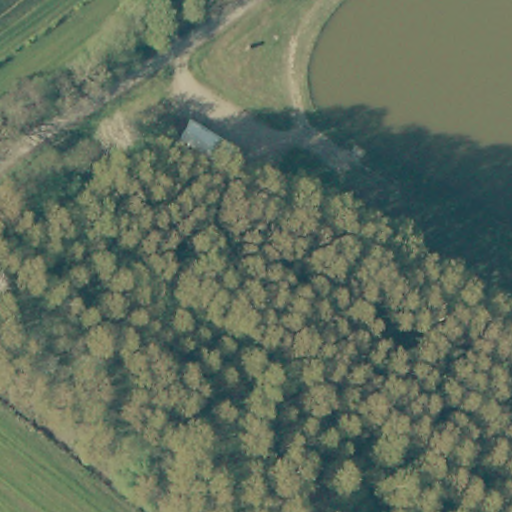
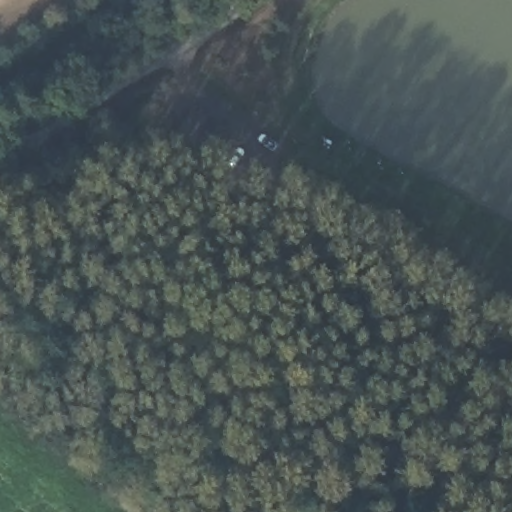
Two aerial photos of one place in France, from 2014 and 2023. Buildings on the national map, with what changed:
[]

